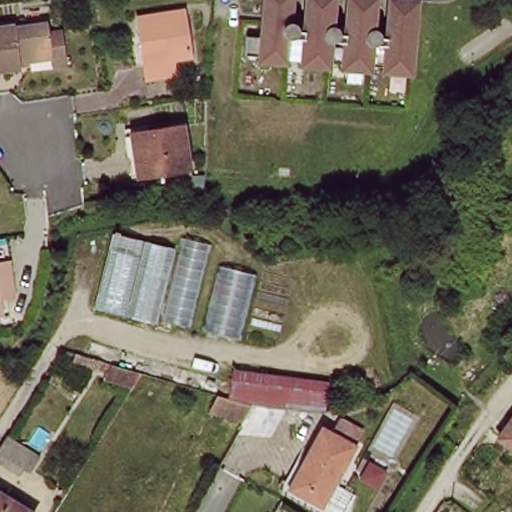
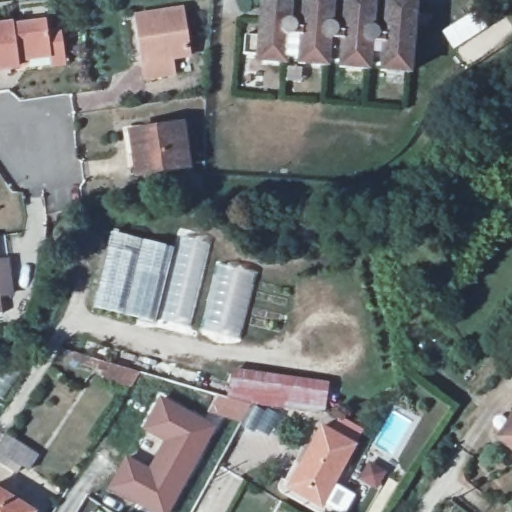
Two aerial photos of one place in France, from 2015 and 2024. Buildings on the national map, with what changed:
unchanged [(416,73),(388,71),(388,66),(375,65),(375,70),(346,67),(347,62),(334,62),(333,67),(305,64),(305,59),(292,58),(292,63),(264,61),(264,56),(250,55),(252,36),(266,37),(268,0),(297,0),(295,22),(299,22),(302,25),(302,29),(308,30),(310,0),(338,0),(337,25),(340,26),(343,29),(344,32),(349,33),(352,0),(380,0),(379,28),(381,29),(385,32),(385,36),(391,36),(393,0),(422,0),(420,27),(417,61),(416,73)]
unchanged [(191,52),(173,55),(176,70),(147,75),(144,59),(149,57),(145,31),(140,32),(137,12),(183,4),(191,52)]
unchanged [(62,25),(67,59),(54,61),(52,51),(20,56),(21,62),(0,65),(0,21),(14,19),(15,22),(47,17),(49,30),(54,29),(53,26),(62,25)]
unchanged [(188,168),(138,176),(132,133),(182,126),(188,168)]
unchanged [(179,252),(185,242),(213,248),(211,258),(261,273),(243,342),(90,310),(110,237),(179,252)]
unchanged [(0,263),(7,315),(0,315),(0,263)]
unchanged [(106,372),(96,368),(101,361),(111,364),(141,373),(133,387),(103,377),(106,372)]
unchanged [(322,407),(257,401),(256,401),(235,394),(238,367),(334,380),(331,407),(322,407)]
new [(172,512),(144,512),(106,493),(124,459),(147,472),(161,444),(140,432),(158,398),(213,427),(172,512)]
unchanged [(331,511),(285,486),(289,479),(323,417),(333,423),(340,410),(363,422),(330,483),(343,490),(331,511)]
unchanged [(499,439),(512,420),(512,448),(504,442),(499,439)]
unchanged [(23,461),(18,469),(0,458),(0,442),(7,431),(40,451),(31,466),(23,461)]
unchanged [(0,512),(0,492),(33,512),(0,512)]

